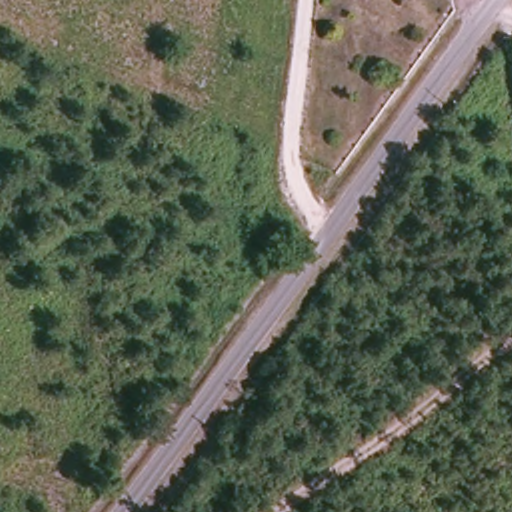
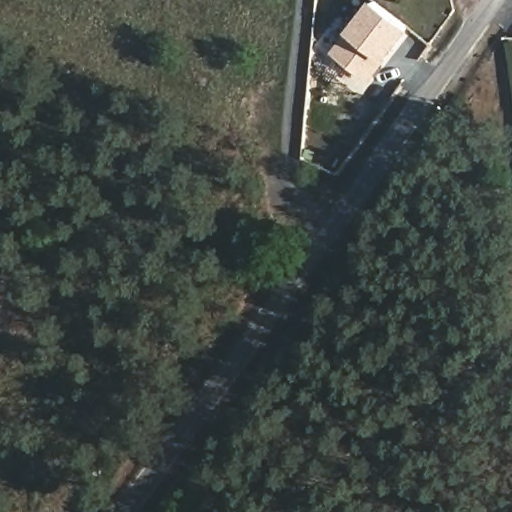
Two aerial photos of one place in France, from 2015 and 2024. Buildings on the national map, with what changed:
new [(372,0),(374,0),(409,28),(368,82),(332,50),(372,0)]

